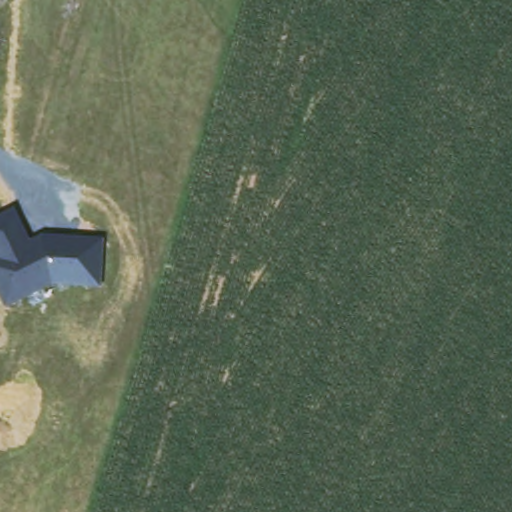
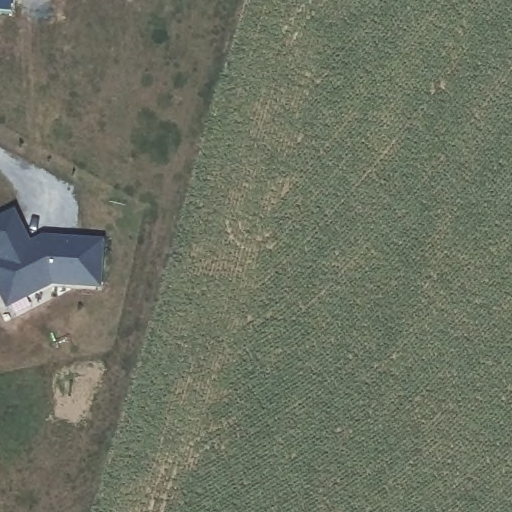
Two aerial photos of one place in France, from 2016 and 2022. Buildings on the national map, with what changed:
unchanged [(29,241),(43,235),(105,238),(102,289),(52,286),(4,307),(0,300),(0,217),(15,209),(29,241)]

